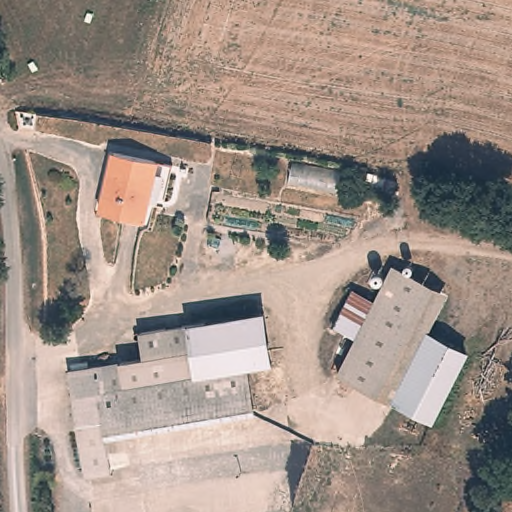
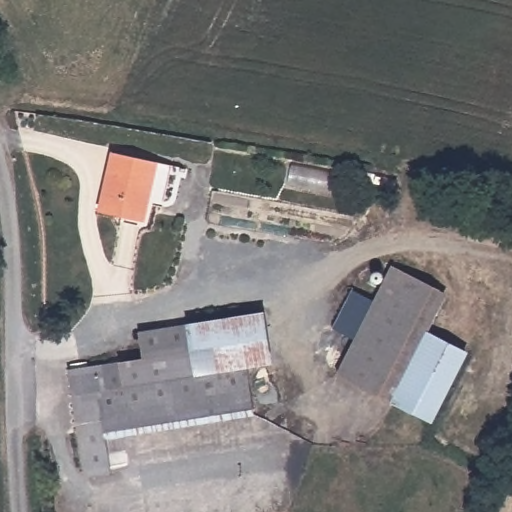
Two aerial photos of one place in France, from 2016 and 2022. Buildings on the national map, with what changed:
unchanged [(110,155),(154,164),(142,219),(100,209),(110,155)]
unchanged [(447,299),(431,332),(395,405),(387,401),(342,378),(394,272),(430,289),(447,299)]
unchanged [(196,350),(191,324),(267,315),(275,363),(252,367),(258,413),(110,438),(97,368),(196,350)]
unchanged [(468,349),(431,425),(395,405),(431,332),(468,349)]
unchanged [(110,438),(115,472),(89,475),(73,371),(97,368),(110,438)]

